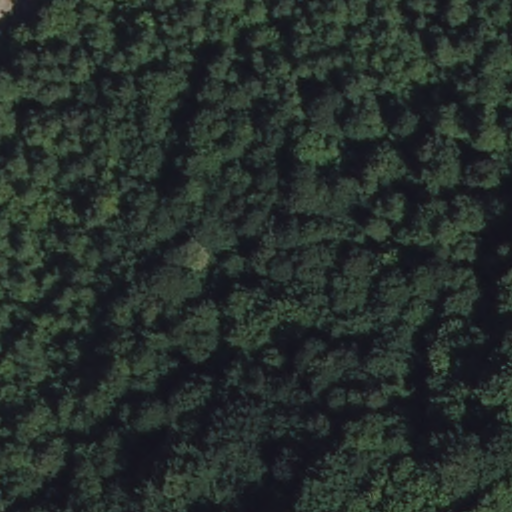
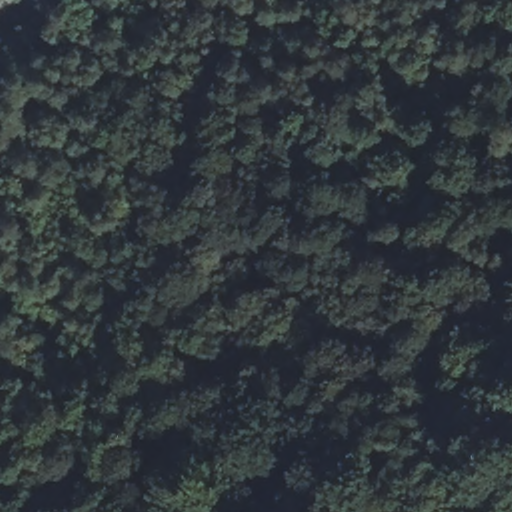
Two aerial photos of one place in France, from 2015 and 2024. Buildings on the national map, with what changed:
[]

